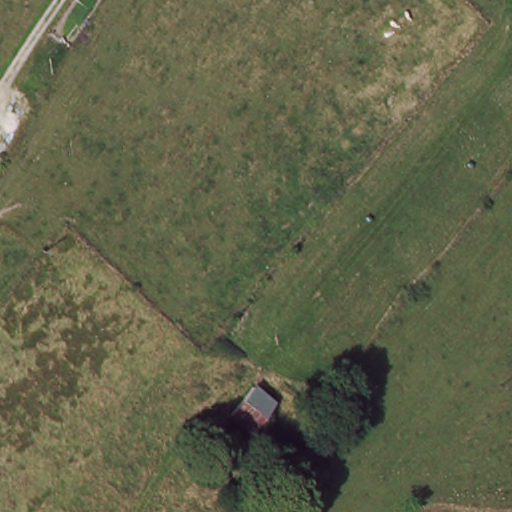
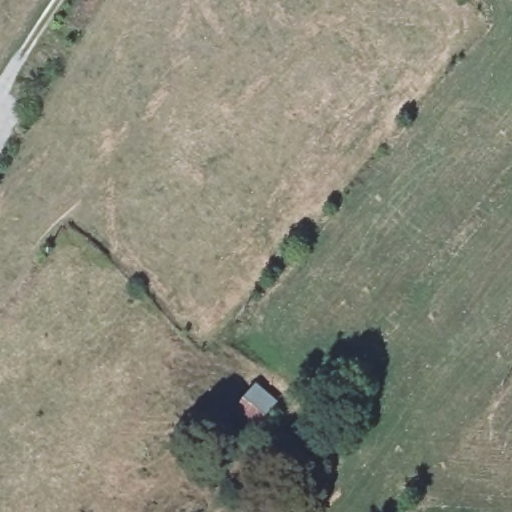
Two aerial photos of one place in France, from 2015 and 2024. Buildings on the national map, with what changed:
unchanged [(279,405),(256,434),(232,415),(257,385),(279,405)]

